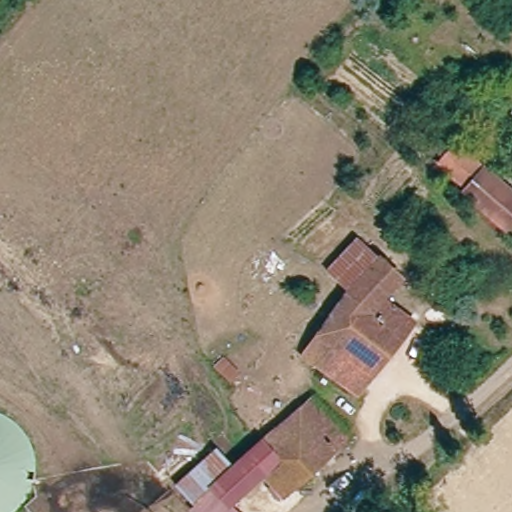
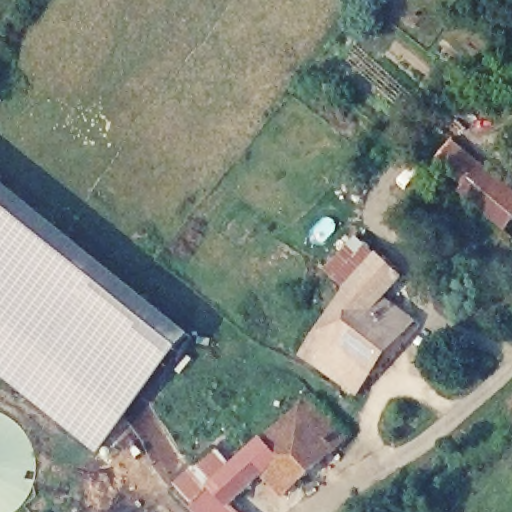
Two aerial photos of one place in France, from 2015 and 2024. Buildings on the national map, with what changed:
unchanged [(490,168),(512,188),(512,227),(508,231),(466,193),(490,168)]
new [(192,336),(97,456),(0,377),(0,182),(192,336)]
new [(356,236),(376,255),(403,277),(387,298),(417,323),(357,397),(299,356),(313,336),(344,290),(325,269),(356,236)]
demolished [(334,318),(326,314),(336,300),(341,305),(390,254),(403,266),(376,296),(414,323),(362,396),(306,357),(334,318)]
unchanged [(193,465),(216,444),(233,464),(316,393),(353,434),(286,497),(265,476),(232,506),(238,512),(203,512),(192,500),(175,481),(193,465)]

